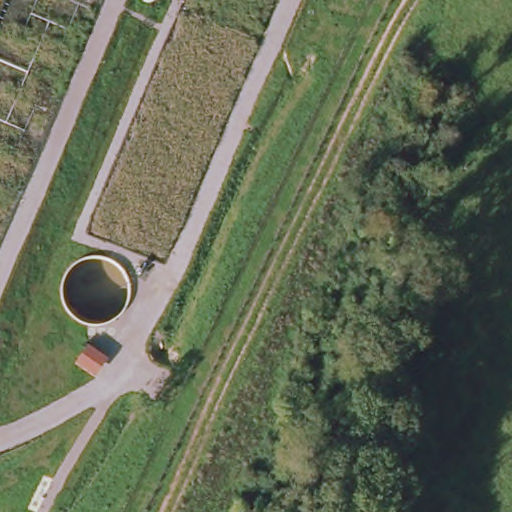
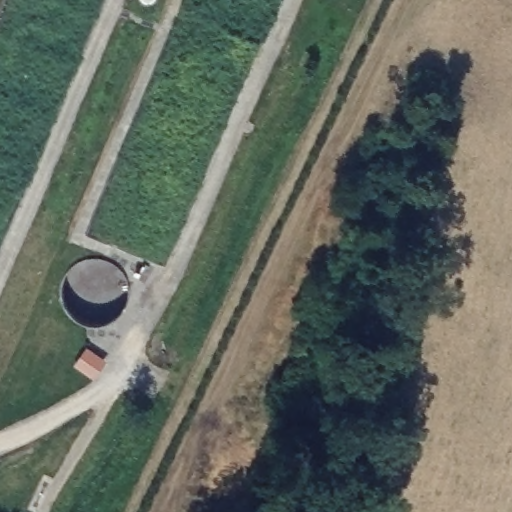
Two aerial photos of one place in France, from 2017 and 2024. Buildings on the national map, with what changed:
unchanged [(108,359),(95,378),(75,364),(87,346),(108,359)]

